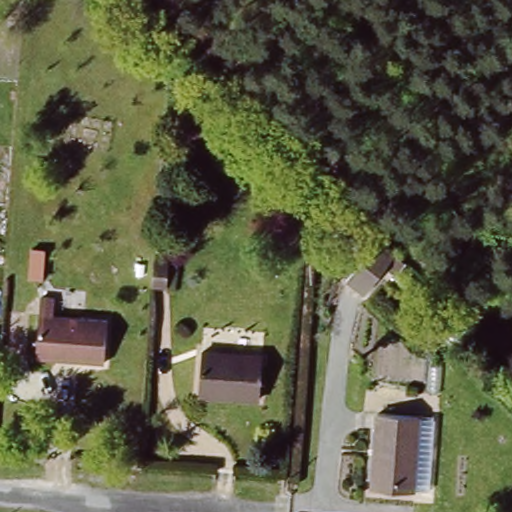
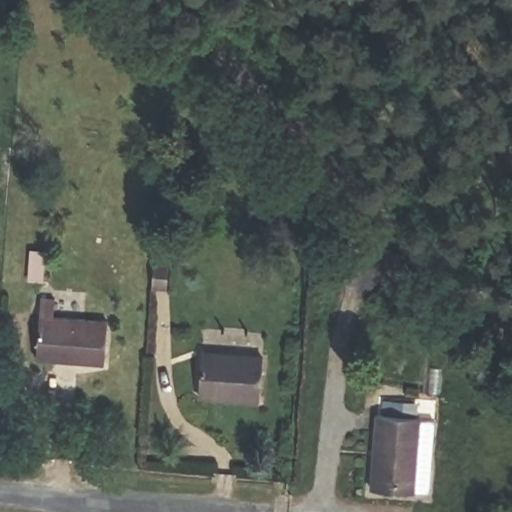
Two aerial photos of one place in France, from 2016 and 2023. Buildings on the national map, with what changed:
unchanged [(379,233),(398,253),(361,288),(342,271),(379,233)]
unchanged [(151,241),(173,243),(171,270),(149,269),(151,241)]
unchanged [(43,301),(56,302),(55,315),(109,319),(105,362),(40,357),(43,301)]
unchanged [(205,351),(264,355),(260,396),(202,392),(205,351)]
unchanged [(381,410),(422,414),(415,491),(374,487),(381,410)]

